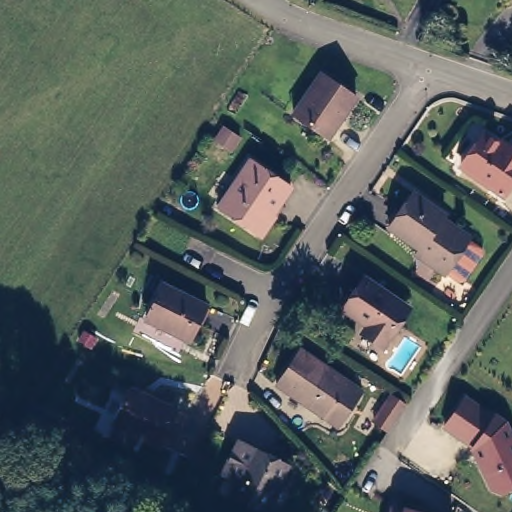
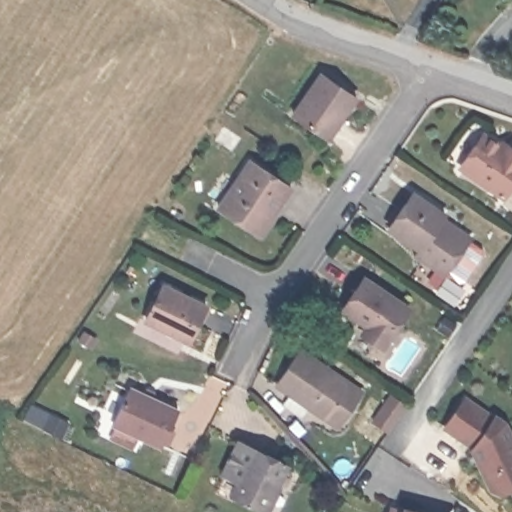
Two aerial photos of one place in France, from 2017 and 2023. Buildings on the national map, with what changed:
unchanged [(350,96),(324,136),(293,115),(320,75),(350,96)]
unchanged [(505,152),(509,147),(512,149),(512,178),(499,196),(458,168),(481,135),(505,152)]
unchanged [(287,191),(258,235),(217,209),(246,164),(287,191)]
unchanged [(447,208),(445,213),(473,233),(472,233),(486,242),(487,248),(470,274),(463,275),(450,266),(450,267),(420,247),(421,244),(391,224),(416,187),(447,208)]
unchanged [(410,308),(400,323),(404,326),(390,346),(369,331),(372,327),(348,311),(369,279),(410,308)]
unchanged [(204,313),(187,346),(143,323),(160,290),(204,313)]
unchanged [(305,344),(367,384),(346,415),(285,374),(305,344)]
unchanged [(114,430),(118,419),(115,418),(130,385),(178,406),(163,439),(141,429),(136,440),(114,430)]
unchanged [(386,427),(374,419),(392,392),(405,400),(386,427)]
unchanged [(496,497),(486,489),(467,446),(441,429),(467,395),(498,412),(507,420),(512,431),(512,489),(496,497)]
unchanged [(293,464),(270,510),(237,493),(243,481),(226,472),(242,438),(293,464)]
unchanged [(403,507),(419,512),(401,512),(403,507)]

